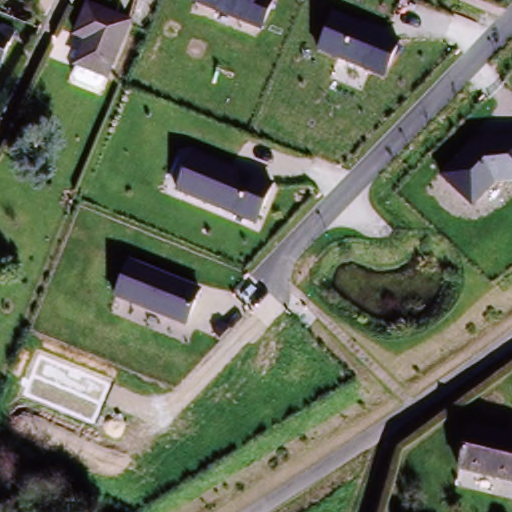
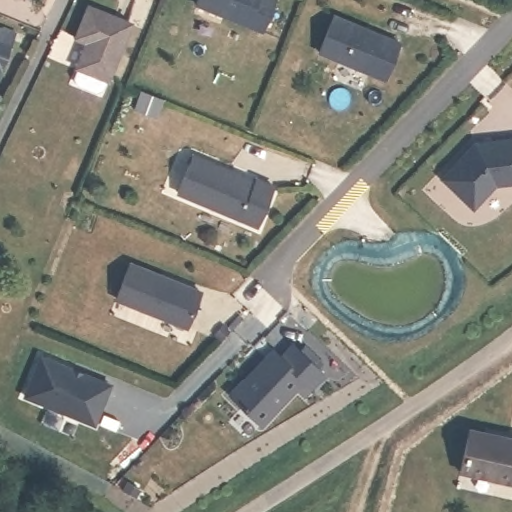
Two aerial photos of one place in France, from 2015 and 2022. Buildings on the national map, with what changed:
unchanged [(195,6),(197,0),(276,0),(262,33),(195,6)]
unchanged [(95,91),(76,82),(73,75),(77,65),(83,53),(90,36),(80,31),(92,2),(134,21),(115,67),(109,79),(107,78),(102,90),(95,91)]
unchanged [(385,83),(319,54),(333,17),(402,44),(385,83)]
unchanged [(0,43),(0,33),(11,37),(9,46),(0,43)]
unchanged [(9,46),(0,71),(0,43),(9,46)]
unchanged [(439,177),(473,143),(512,139),(512,185),(495,187),(473,211),(439,177)]
unchanged [(258,228),(176,194),(190,152),(275,187),(258,228)]
unchanged [(116,301),(117,299),(131,262),(201,293),(187,330),(116,301)]
new [(288,360),(301,347),(307,353),(311,348),(331,366),(326,371),(333,377),(320,391),(312,384),(269,429),(237,399),(281,353),(288,360)]
new [(44,359),(116,389),(99,430),(27,400),(44,359)]
unchanged [(508,487),(460,475),(469,433),(508,487)]
unchanged [(512,443),(512,488),(508,487),(469,433),(512,443)]

